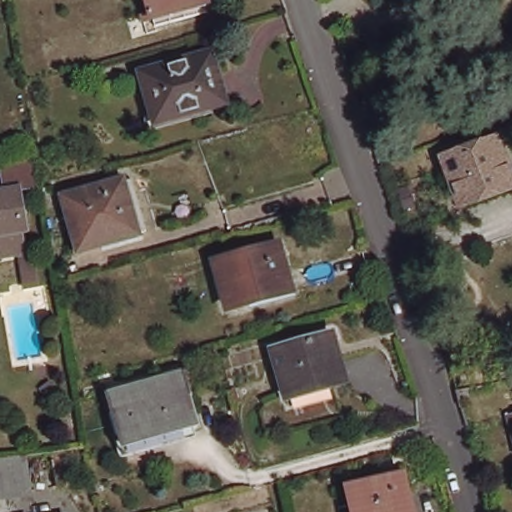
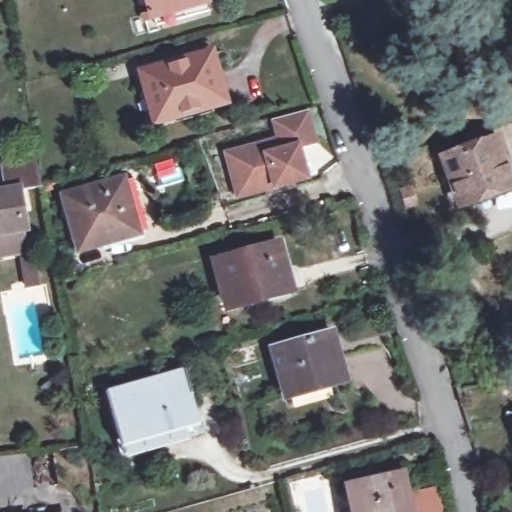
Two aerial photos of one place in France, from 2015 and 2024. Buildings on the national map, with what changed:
unchanged [(153,16),(149,0),(207,0),(153,16)]
unchanged [(145,74),(212,55),(225,102),(157,120),(145,74)]
new [(235,201),(222,151),(275,137),(271,121),(310,110),(319,144),(301,149),(310,180),(272,190),(235,201)]
unchanged [(467,207),(460,210),(442,159),(493,140),(509,182),(512,190),(467,207)]
unchanged [(22,213),(16,215),(23,258),(0,262),(0,197),(2,197),(0,185),(0,171),(32,164),(36,191),(18,194),(22,213)]
unchanged [(60,203),(127,185),(142,237),(75,256),(60,203)]
unchanged [(223,287),(216,262),(280,245),(292,291),(245,303),(229,307),(223,287)]
unchanged [(272,351),(332,333),(346,381),(287,398),(272,351)]
unchanged [(187,426),(122,443),(108,395),(186,371),(195,401),(182,405),(187,426)]
unchanged [(0,490),(0,461),(33,457),(37,484),(0,490)]
unchanged [(405,473),(413,512),(352,512),(346,487),(405,473)]

